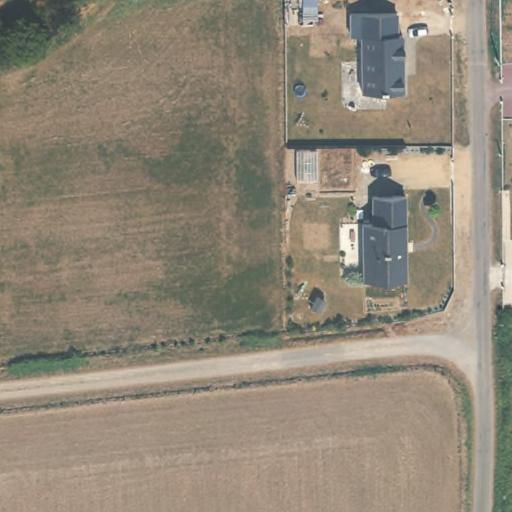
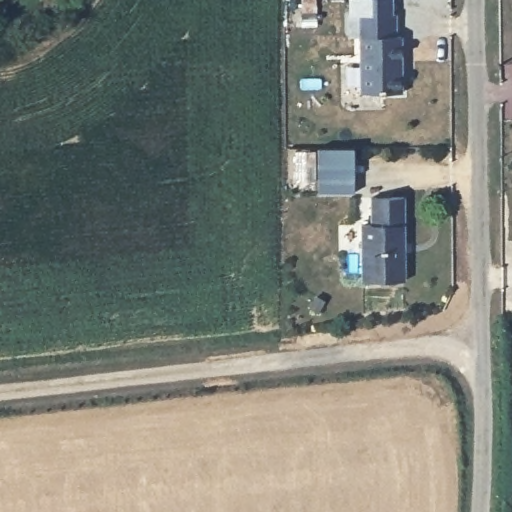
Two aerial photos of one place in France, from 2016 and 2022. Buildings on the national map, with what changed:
unchanged [(405,93),(364,94),(363,38),(404,37),(405,93)]
new [(317,193),(317,147),(355,147),(354,192),(317,193)]
unchanged [(406,279),(364,280),(362,224),(372,224),(371,196),(404,195),(406,279)]

